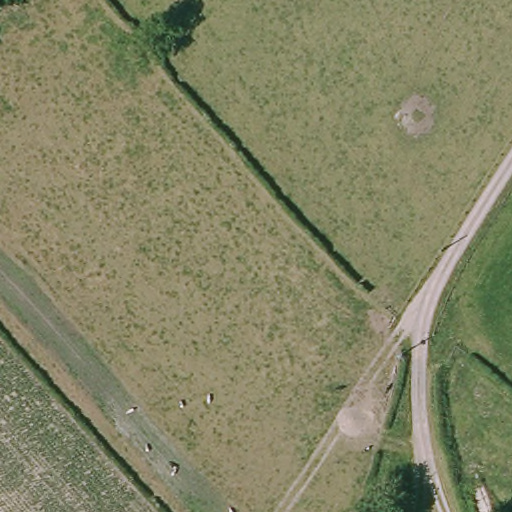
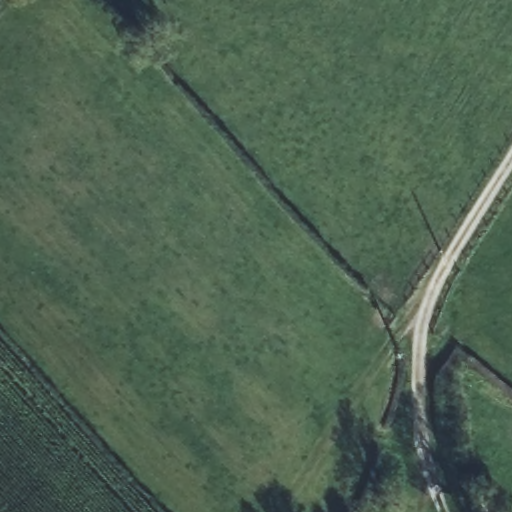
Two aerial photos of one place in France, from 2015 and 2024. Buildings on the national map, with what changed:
[]

